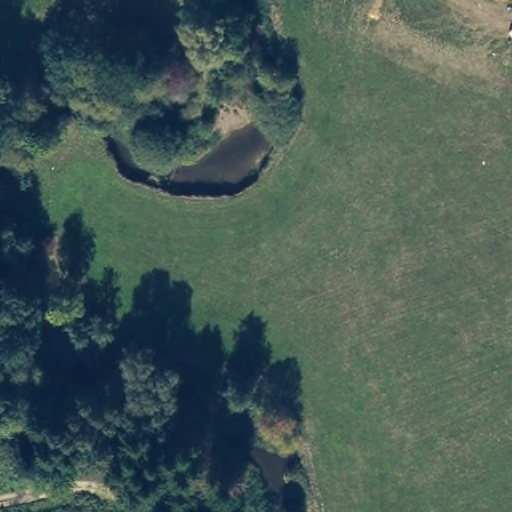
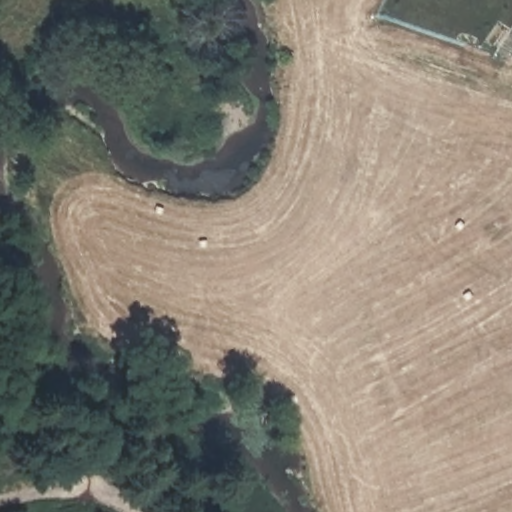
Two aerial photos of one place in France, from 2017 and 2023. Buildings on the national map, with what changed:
[]

